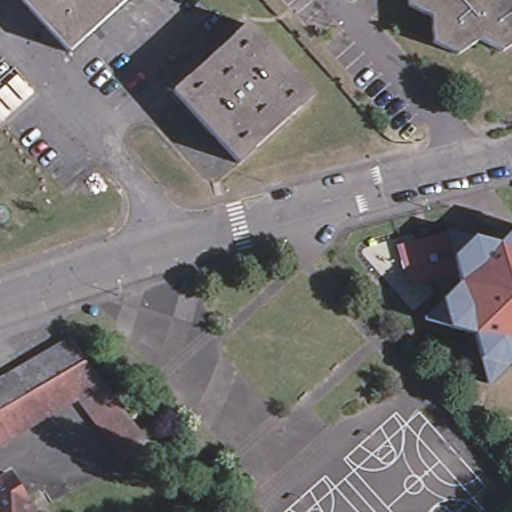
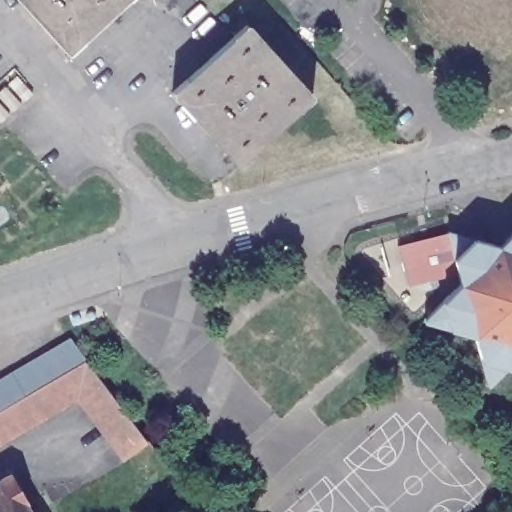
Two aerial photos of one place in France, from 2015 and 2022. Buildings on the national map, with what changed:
unchanged [(75,54),(25,0),(133,0),(75,54)]
demolished [(512,48),(502,55),(478,42),(457,56),(434,43),(432,20),(407,6),(407,0),(512,0),(512,48)]
unchanged [(312,93),(237,158),(172,86),(234,29),(242,21),(312,93)]
unchanged [(447,232),(449,232),(450,229),(462,233),(460,236),(486,243),(497,246),(512,231),(512,364),(507,368),(505,366),(485,385),(472,335),(457,330),(456,333),(452,331),(452,329),(435,324),(435,327),(422,324),(424,321),(422,321),(422,319),(459,283),(456,272),(427,280),(407,284),(397,246),(417,241),(446,234),(446,233),(447,232)]
unchanged [(9,369),(64,335),(80,358),(22,392),(9,369)]
unchanged [(75,401),(69,404),(52,378),(82,361),(100,383),(75,401)]
unchanged [(9,369),(22,392),(0,406),(0,374),(9,369)]
unchanged [(0,445),(0,409),(52,378),(69,404),(0,445)]
unchanged [(145,444),(120,462),(75,401),(100,383),(145,444)]
unchanged [(24,503),(21,505),(25,512),(0,512),(0,481),(7,476),(24,503)]

